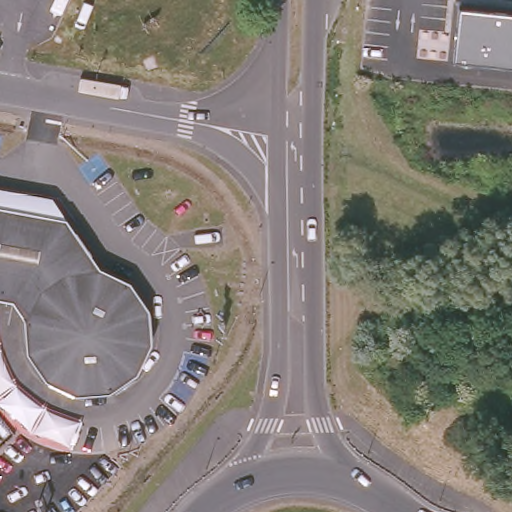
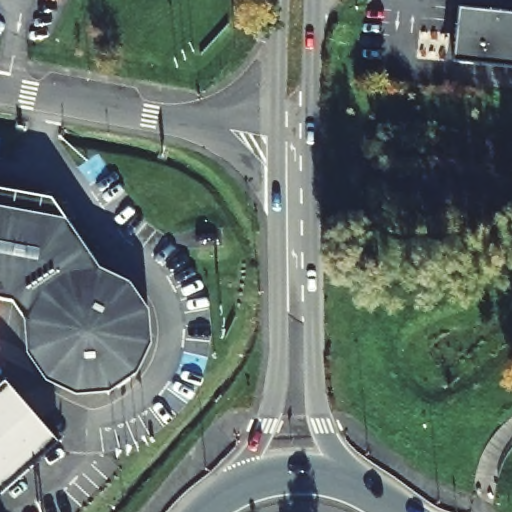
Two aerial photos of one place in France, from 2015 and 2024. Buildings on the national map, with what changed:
unchanged [(455,62),(461,8),(512,14),(512,67),(455,62)]
unchanged [(0,199),(0,188),(2,188),(0,199)]
new [(67,218),(0,207),(0,199),(2,188),(52,196),(67,218)]
unchanged [(29,353),(35,304),(0,298),(0,207),(74,219),(104,271),(118,276),(84,393),(52,381),(29,353)]
unchanged [(118,276),(133,282),(154,308),(157,343),(149,370),(112,392),(84,393),(118,276)]
new [(0,489),(0,387),(7,381),(57,439),(0,489)]

